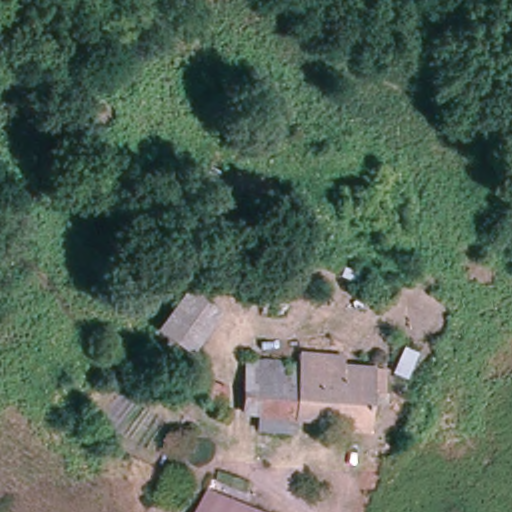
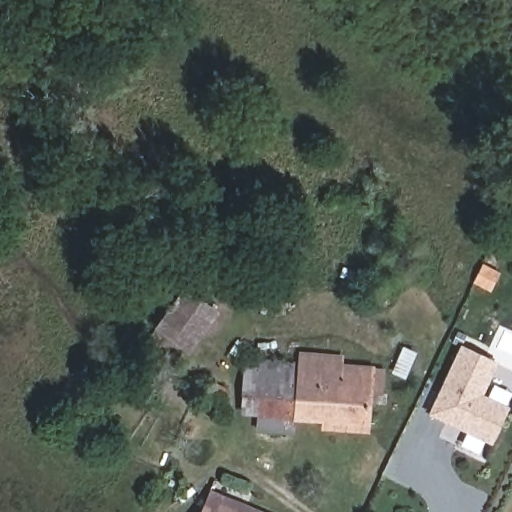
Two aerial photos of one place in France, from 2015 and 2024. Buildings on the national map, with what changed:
unchanged [(343,265),(362,270),(358,283),(339,277),(343,265)]
unchanged [(217,303),(182,361),(151,342),(188,285),(217,303)]
new [(491,362),(475,393),(502,406),(485,440),(425,411),(456,345),(491,362)]
unchanged [(405,379),(391,372),(402,347),(417,353),(405,379)]
unchanged [(254,420),(258,362),(386,376),(383,431),(254,420)]
unchanged [(219,414),(202,407),(205,397),(189,388),(194,375),(227,388),(219,414)]
unchanged [(209,497),(247,512),(203,512),(209,497)]

